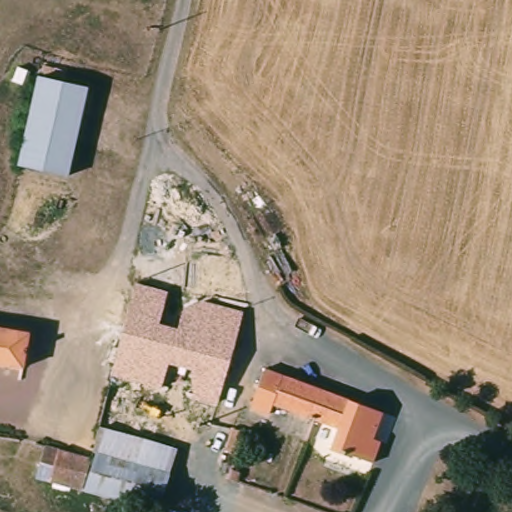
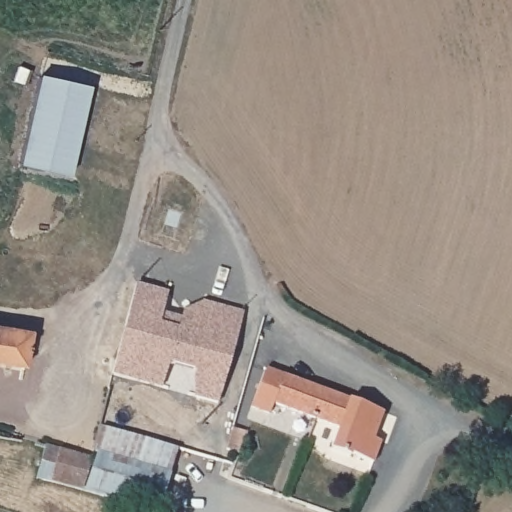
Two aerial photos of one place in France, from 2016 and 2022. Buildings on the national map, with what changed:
unchanged [(85,90),(67,178),(17,168),(35,79),(85,90)]
unchanged [(211,416),(175,406),(177,398),(137,387),(138,382),(109,374),(112,365),(137,276),(160,282),(187,288),(244,303),(242,311),(235,335),(211,416)]
unchanged [(29,329),(23,364),(0,361),(0,324),(29,329)]
unchanged [(383,444),(392,448),(383,470),(357,459),(358,454),(349,451),(347,454),(328,447),(338,424),(273,400),(269,410),(250,403),(265,364),(270,366),(283,371),(287,372),(296,376),(341,394),(350,397),(382,409),(374,431),(386,436),(383,444)]
unchanged [(85,491),(35,477),(43,442),(93,454),(85,491)]
unchanged [(93,454),(94,447),(169,466),(158,511),(85,491),(93,454)]

